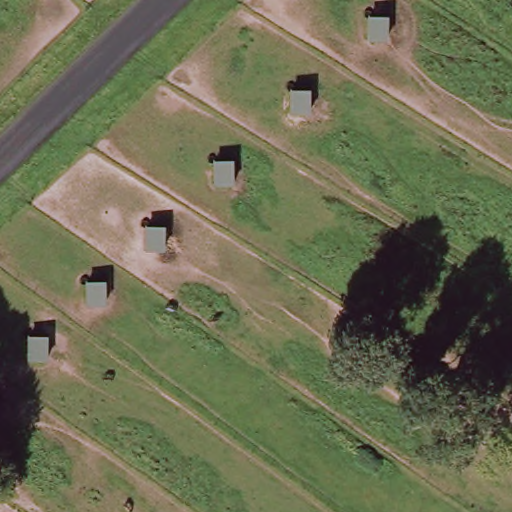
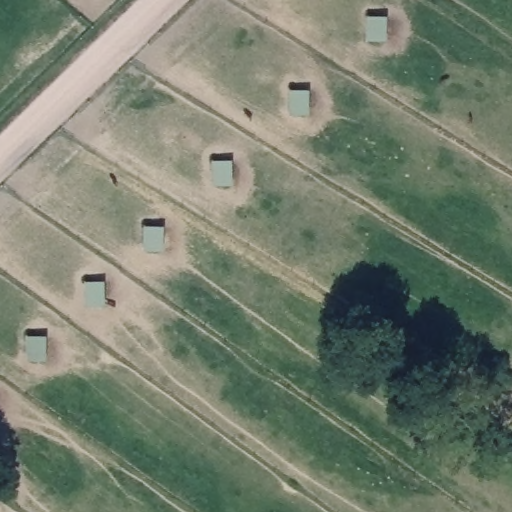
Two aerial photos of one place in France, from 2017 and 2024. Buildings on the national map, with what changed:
[]

